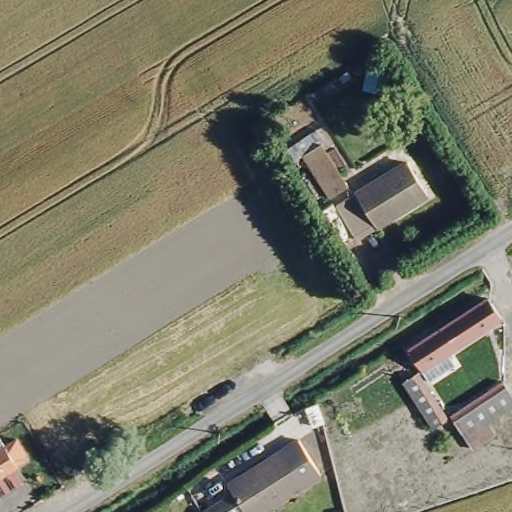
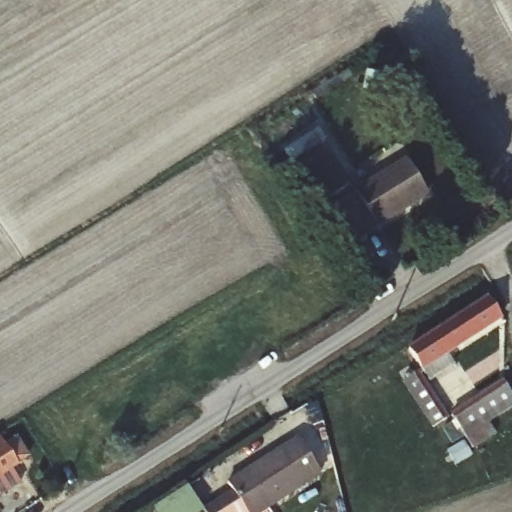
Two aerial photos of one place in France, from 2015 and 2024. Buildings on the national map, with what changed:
unchanged [(347,185),(330,196),(303,152),(322,141),(347,185)]
unchanged [(427,194),(354,239),(332,206),(406,160),(427,194)]
unchanged [(487,303),(499,324),(443,356),(449,369),(422,385),(417,375),(404,352),(487,303)]
unchanged [(402,382),(413,377),(440,423),(430,429),(402,382)]
unchanged [(512,396),(512,410),(467,437),(455,414),(506,383),(512,396)]
unchanged [(314,474),(254,512),(200,512),(198,509),(227,489),(224,483),(293,439),(314,474)]
unchanged [(29,461),(0,479),(0,453),(18,442),(29,461)]

